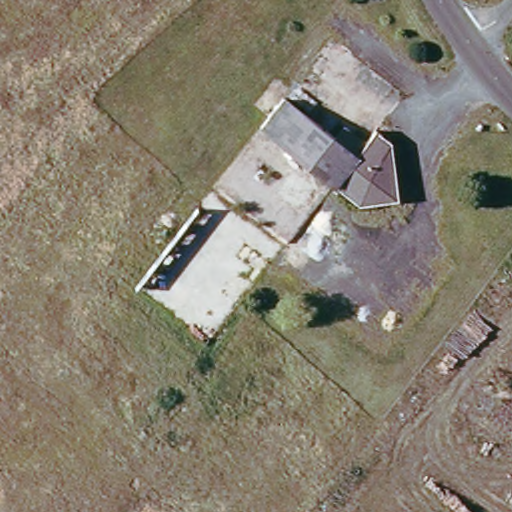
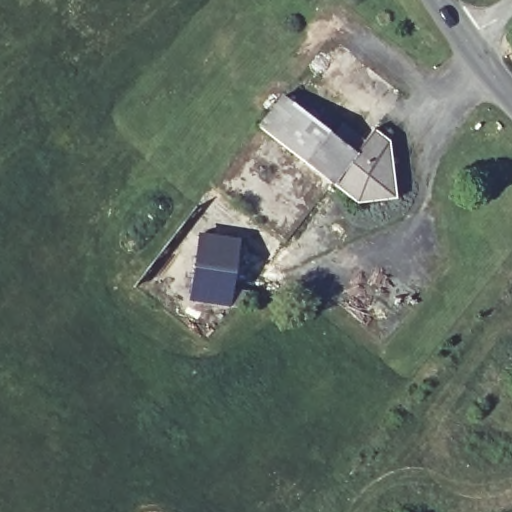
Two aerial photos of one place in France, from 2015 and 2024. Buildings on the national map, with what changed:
unchanged [(265,124),(287,93),(363,147),(381,121),(397,131),(408,190),(406,192),(368,197),(265,124)]
new [(198,231),(241,238),(230,307),(188,300),(198,231)]

